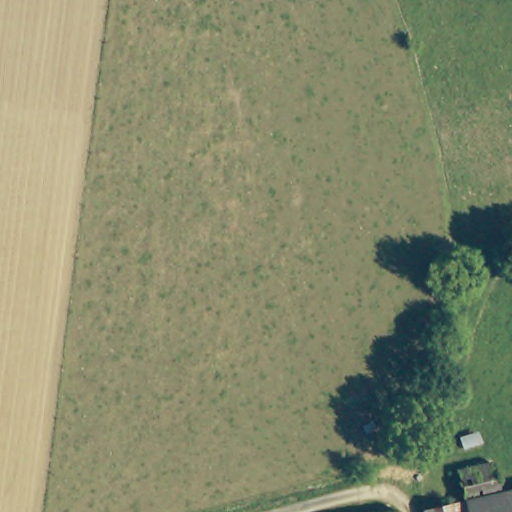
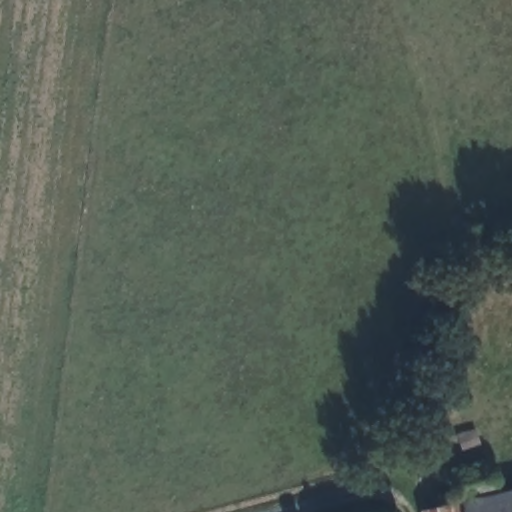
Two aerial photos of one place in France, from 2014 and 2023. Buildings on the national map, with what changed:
unchanged [(492,462),(498,493),(461,499),(456,469),(492,462)]
unchanged [(448,501),(461,499),(498,493),(512,490),(512,512),(451,512),(448,501)]
unchanged [(448,501),(451,512),(423,512),(421,506),(448,501)]

